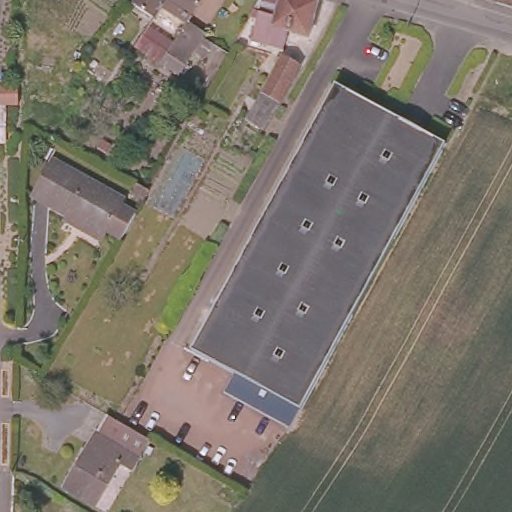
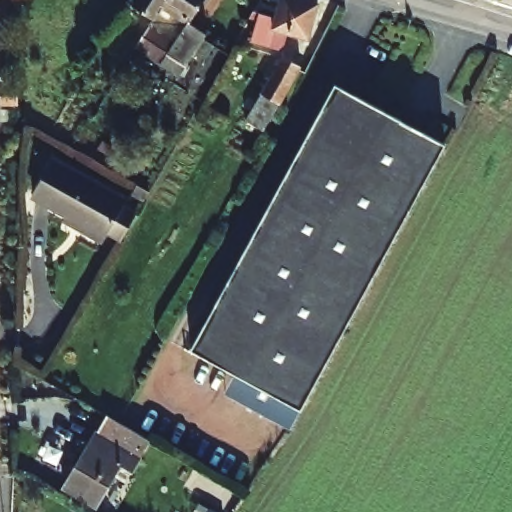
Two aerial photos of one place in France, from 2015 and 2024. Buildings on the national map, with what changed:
unchanged [(177,13),(180,9),(167,0),(188,0),(185,5),(202,17),(181,50),(152,30),(145,40),(130,30),(142,14),(160,25),(170,9),(177,13)]
unchanged [(147,3),(143,0),(150,0),(147,3)]
unchanged [(307,32),(290,27),(287,39),(256,30),(263,10),(252,8),(257,0),(317,0),(307,32)]
unchanged [(279,98),(262,89),(282,52),(300,61),(279,98)]
unchanged [(307,406),(195,344),(338,80),(449,140),(307,406)]
unchanged [(48,104),(30,104),(30,86),(49,86),(48,104)]
unchanged [(122,191),(104,227),(33,189),(52,153),(122,191)]
unchanged [(92,502),(58,484),(100,411),(105,414),(145,436),(126,468),(115,462),(92,502)]

